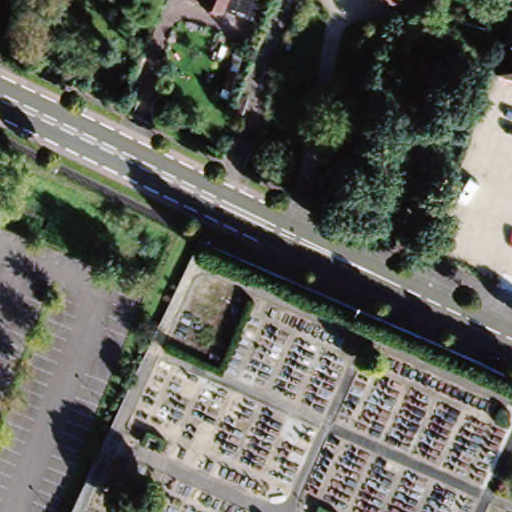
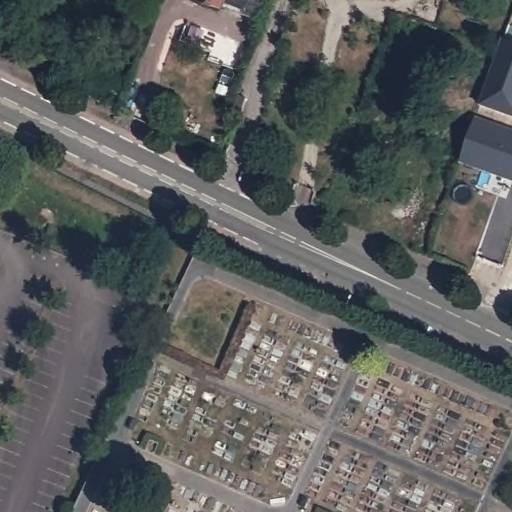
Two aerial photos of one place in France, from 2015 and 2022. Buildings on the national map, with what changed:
unchanged [(220,3),(211,0),(221,0),(220,3)]
unchanged [(220,3),(221,0),(269,0),(262,19),(220,3)]
unchanged [(506,43),(504,41),(512,18),(512,77),(497,71),(506,43)]
new [(473,121),(512,136),(512,180),(506,178),(506,180),(458,163),(473,121)]

